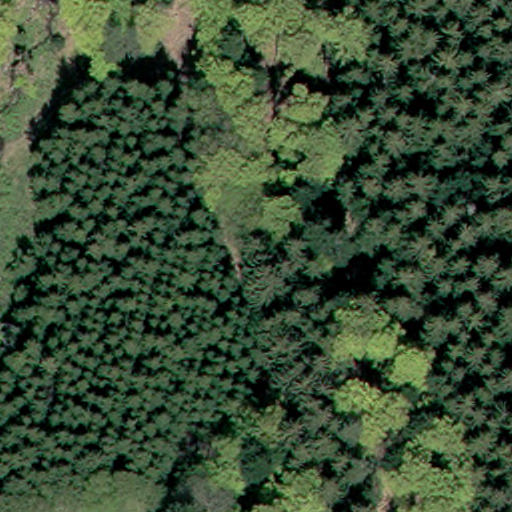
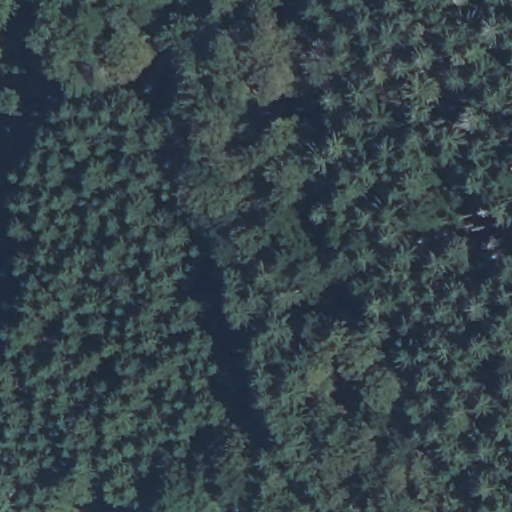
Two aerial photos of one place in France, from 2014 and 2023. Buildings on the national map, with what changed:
[]

